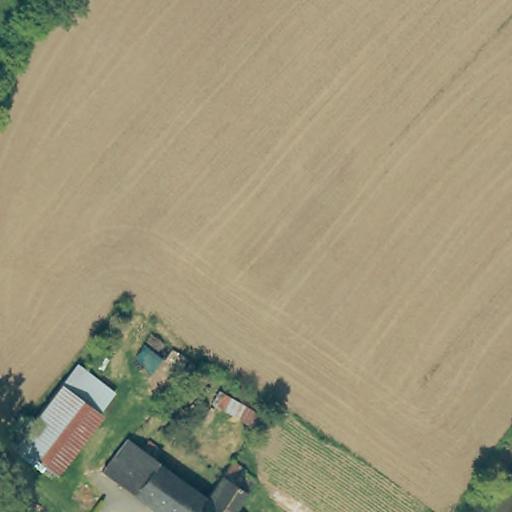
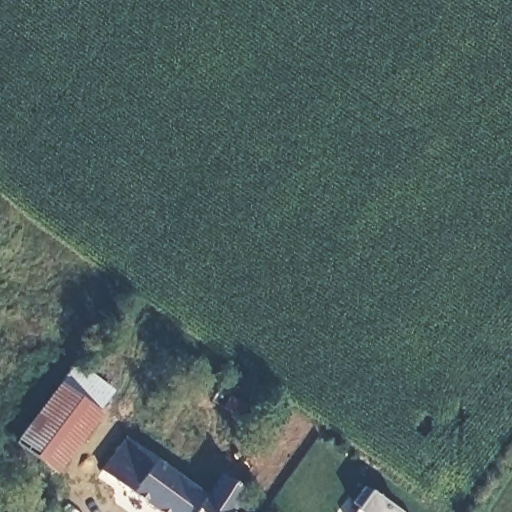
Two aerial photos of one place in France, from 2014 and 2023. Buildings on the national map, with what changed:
unchanged [(74,363),(115,388),(98,409),(102,413),(57,475),(13,443),(74,363)]
unchanged [(223,474),(233,460),(256,477),(247,490),(231,512),(164,512),(102,467),(125,435),(209,495),(223,474)]
new [(358,507),(352,502),(364,485),(371,491),(401,512),(355,512),(356,510),(358,507)]

